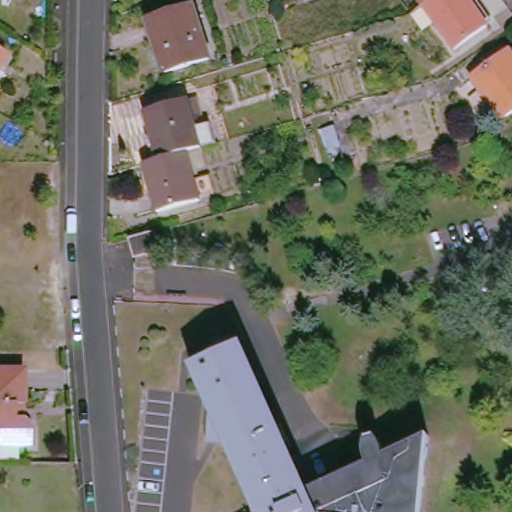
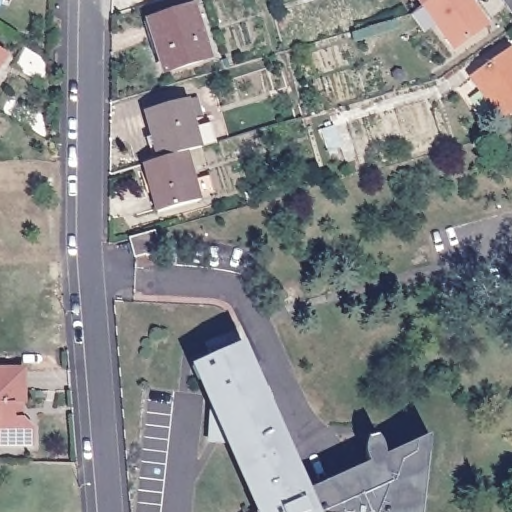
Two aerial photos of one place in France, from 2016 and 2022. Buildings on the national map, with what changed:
unchanged [(15,0),(13,2),(9,0),(15,0)]
unchanged [(425,0),(437,0),(429,5),(425,0)]
unchanged [(475,0),(494,27),(461,50),(429,5),(437,0),(475,0)]
unchanged [(149,25),(196,10),(211,62),(166,75),(149,25)]
unchanged [(9,60),(0,74),(0,53),(9,60)]
unchanged [(512,59),(512,117),(506,121),(480,81),(512,59)]
unchanged [(193,157),(165,164),(151,115),(193,105),(207,154),(193,157)]
unchanged [(165,164),(193,157),(205,205),(163,216),(150,168),(165,164)]
unchanged [(156,230),(161,245),(136,254),(132,236),(156,230)]
unchanged [(373,466),(371,463),(371,462),(371,461),(370,460),(369,459),(369,457),(369,455),(369,453),(369,451),(369,449),(369,447),(369,446),(370,444),(371,442),(371,440),(381,439),(381,440),(382,440),(383,441),(384,445),(386,446),(387,448),(387,450),(388,453),(388,454),(388,455),(389,457),(389,459),(433,440),(425,512),(258,512),(201,382),(196,383),(193,370),(246,348),(310,494),(373,466)]
unchanged [(1,440),(0,440),(0,370),(28,370),(29,405),(20,406),(20,418),(27,419),(36,426),(35,445),(2,445),(1,440)]

